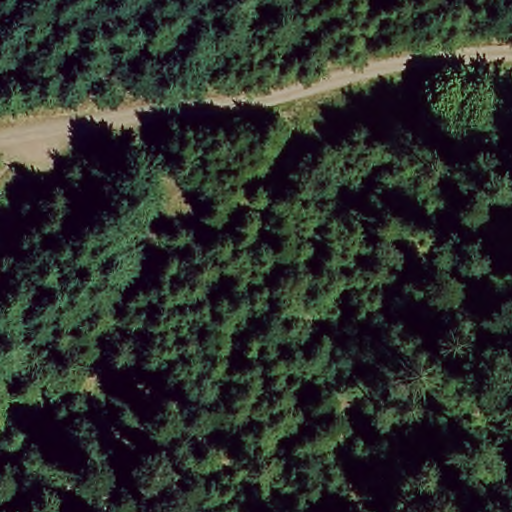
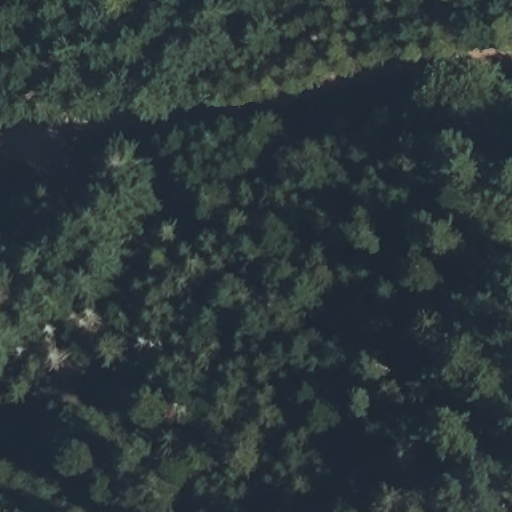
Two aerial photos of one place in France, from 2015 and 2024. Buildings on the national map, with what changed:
unchanged [(0,243),(5,249),(0,254),(0,243)]

